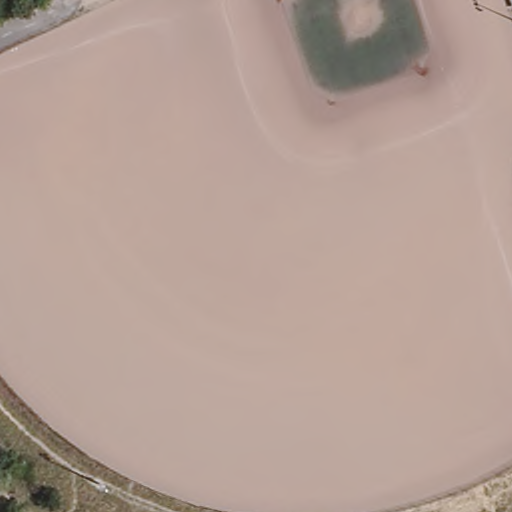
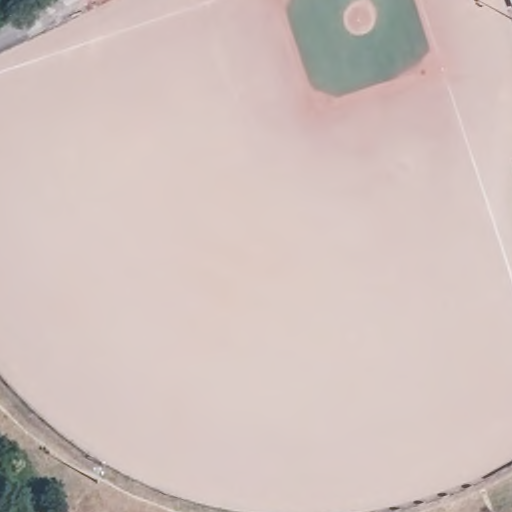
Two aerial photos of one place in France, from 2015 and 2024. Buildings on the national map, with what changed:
unchanged [(510,0),(512,0),(512,4),(510,0)]

